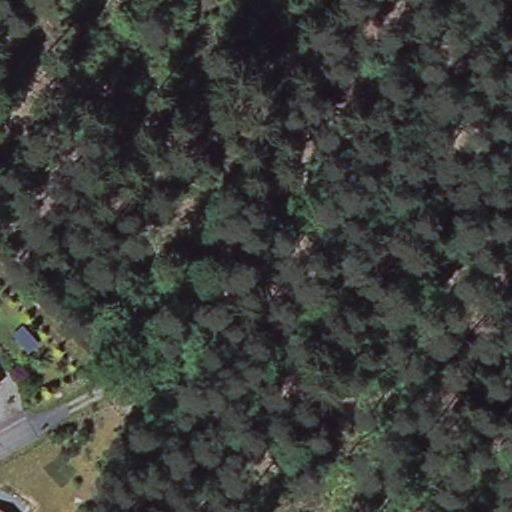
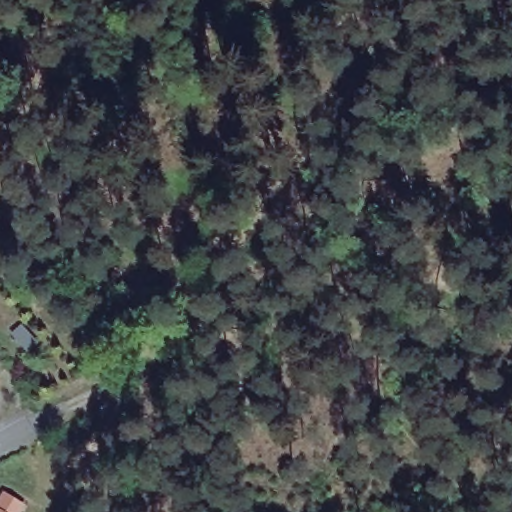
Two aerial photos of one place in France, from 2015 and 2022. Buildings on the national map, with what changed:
unchanged [(0,510),(4,512),(0,512),(0,510)]

